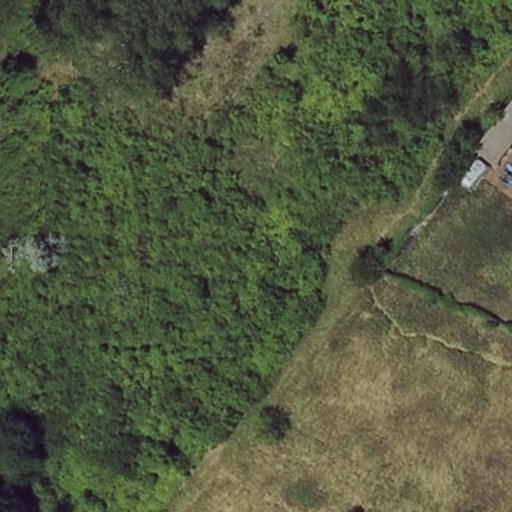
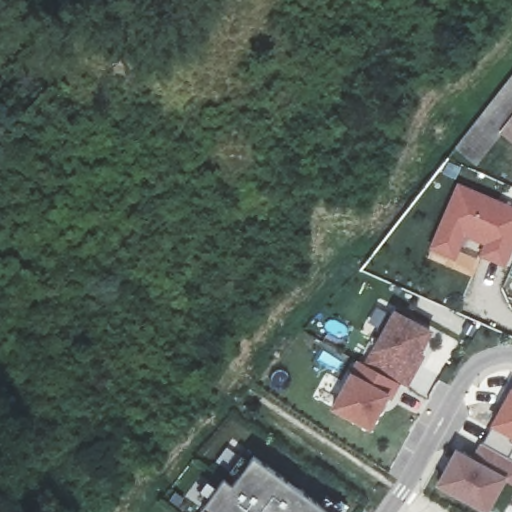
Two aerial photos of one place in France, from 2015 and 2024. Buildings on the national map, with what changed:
unchanged [(512,153),(470,120),(512,64),(512,153)]
new [(512,254),(507,265),(485,256),(490,245),(466,235),(456,258),(435,248),(462,187),(512,209),(512,254)]
new [(331,410),(351,373),(358,361),(366,364),(372,352),(394,310),(432,331),(419,355),(426,360),(409,390),(402,385),(393,403),(387,401),(372,432),(331,410)]
new [(512,390),(512,462),(483,447),(491,427),(512,390)]
new [(490,512),(483,512),(435,486),(453,448),(471,458),(479,445),(512,462),(512,484),(506,481),(490,512)]
new [(342,512),(206,512),(203,509),(223,479),(233,486),(254,458),(319,506),(325,497),(344,508),(342,512)]

